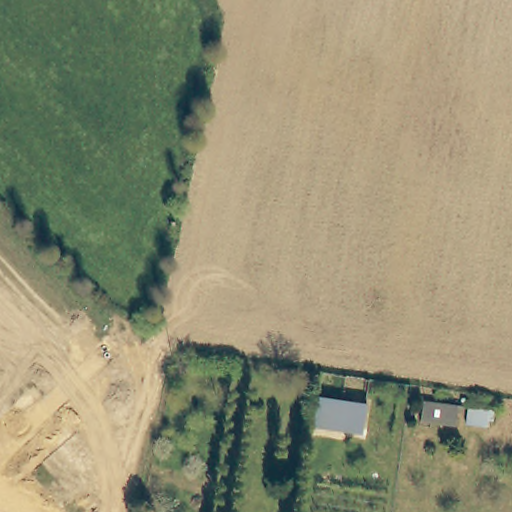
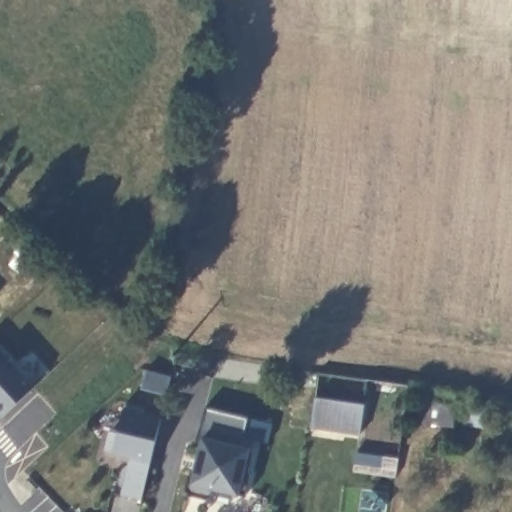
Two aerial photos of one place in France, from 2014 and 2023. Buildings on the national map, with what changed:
new [(2,416),(0,413),(0,350),(4,355),(34,386),(2,416)]
unchanged [(462,406),(488,408),(484,426),(457,423),(457,426),(414,421),(418,399),(462,406)]
unchanged [(358,408),(354,438),(306,431),(310,401),(358,408)]
new [(121,496),(130,457),(113,452),(104,451),(109,430),(119,432),(124,409),(125,402),(144,407),(143,413),(161,417),(152,462),(142,500),(121,496)]
new [(242,446),(251,449),(254,449),(249,470),(251,475),(246,496),(239,493),(239,496),(213,490),(211,497),(205,498),(190,495),(186,487),(189,475),(193,476),(202,435),(207,409),(247,418),(242,446)]

